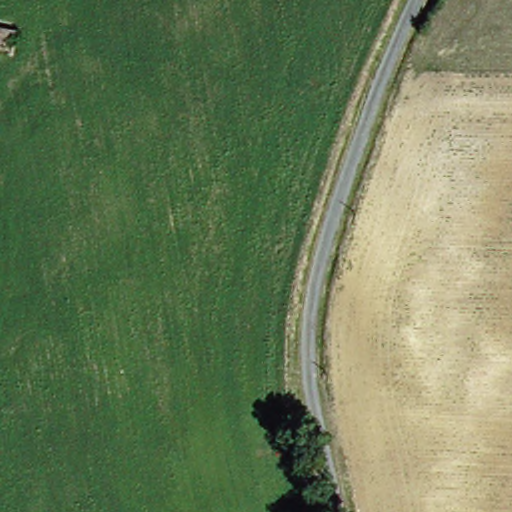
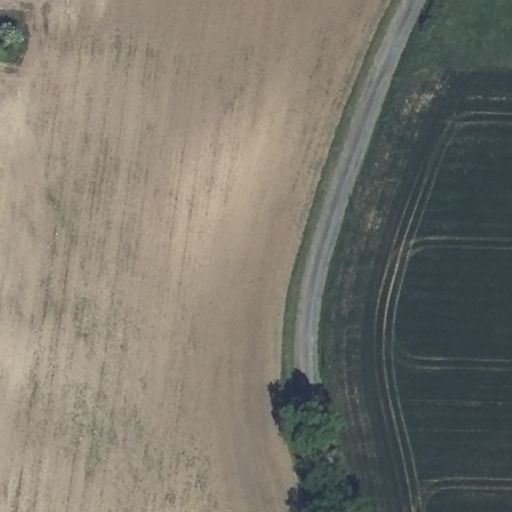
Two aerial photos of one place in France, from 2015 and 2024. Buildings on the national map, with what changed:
unchanged [(0,51),(0,23),(22,27),(18,54),(0,51)]

